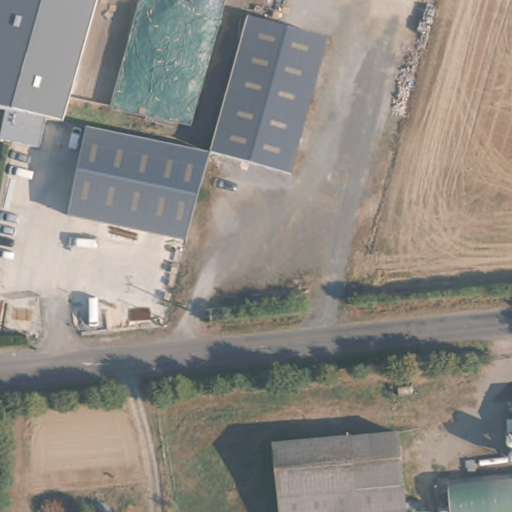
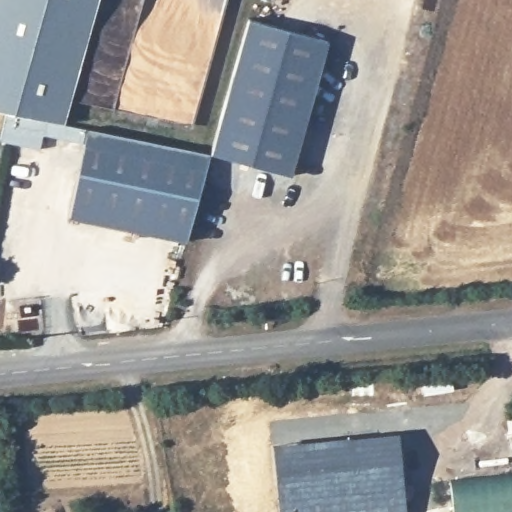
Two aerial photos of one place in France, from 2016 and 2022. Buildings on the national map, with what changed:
unchanged [(64,123),(35,117),(0,110),(0,0),(94,0),(64,123)]
unchanged [(235,80),(252,18),(332,39),(297,174),(217,153),(235,80)]
unchanged [(194,241),(76,218),(94,129),(216,154),(194,241)]
unchanged [(408,512),(283,512),(276,450),(399,437),(408,512)]
unchanged [(451,512),(448,482),(512,476),(512,512),(451,512)]

